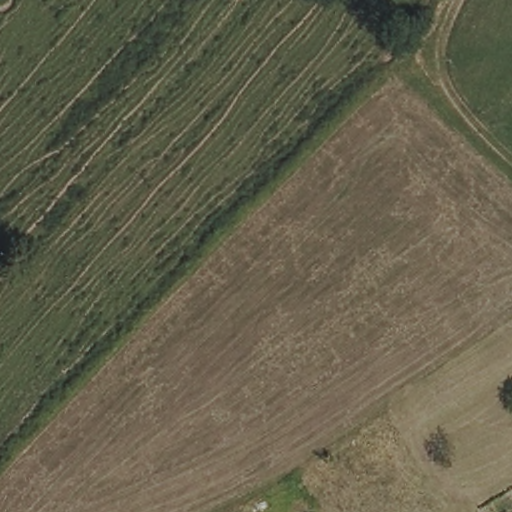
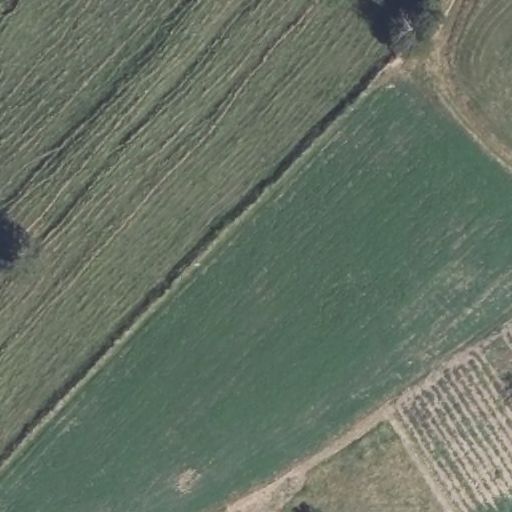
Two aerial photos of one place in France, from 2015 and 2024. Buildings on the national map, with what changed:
[]

